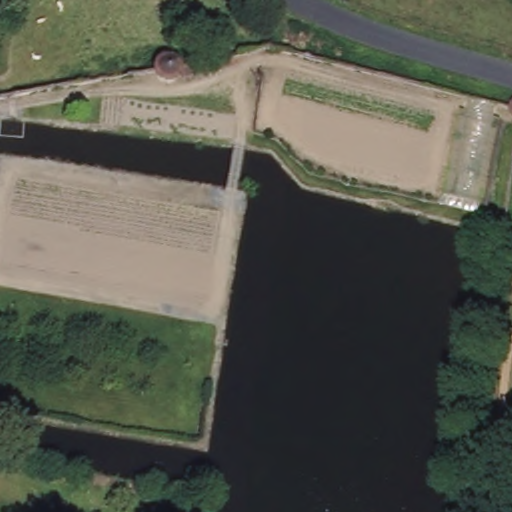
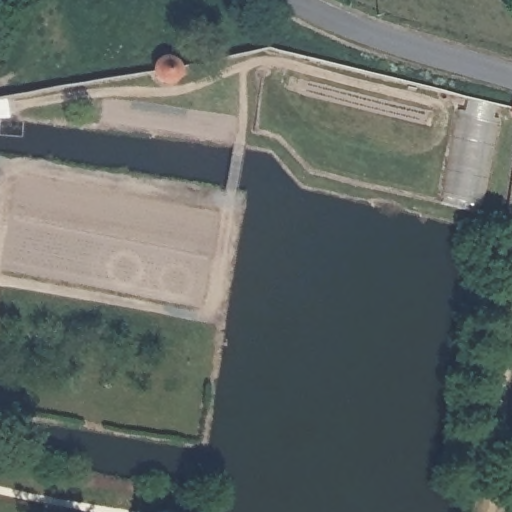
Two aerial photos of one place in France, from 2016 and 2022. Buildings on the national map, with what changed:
unchanged [(153,72),(160,57),(176,57),(183,67),(181,79),(165,86),(159,82),(153,72)]
unchanged [(458,97),(504,105),(480,209),(438,199),(458,97)]
unchanged [(512,106),(512,113),(511,107),(512,106)]

